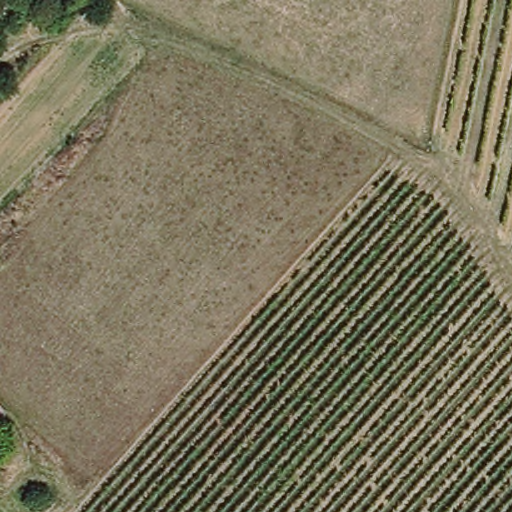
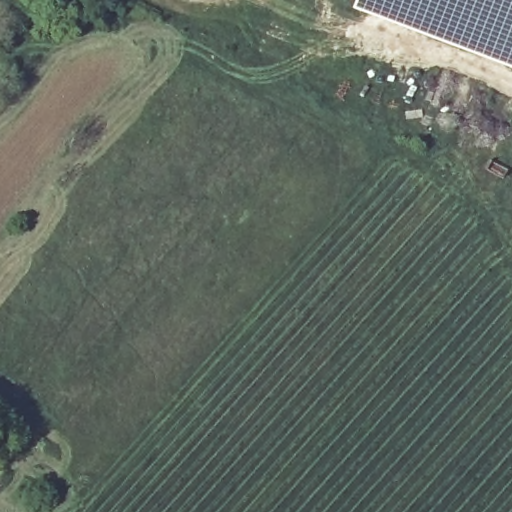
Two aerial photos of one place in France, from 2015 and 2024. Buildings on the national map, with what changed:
new [(512,0),(512,73),(348,13),(353,0),(512,0)]

